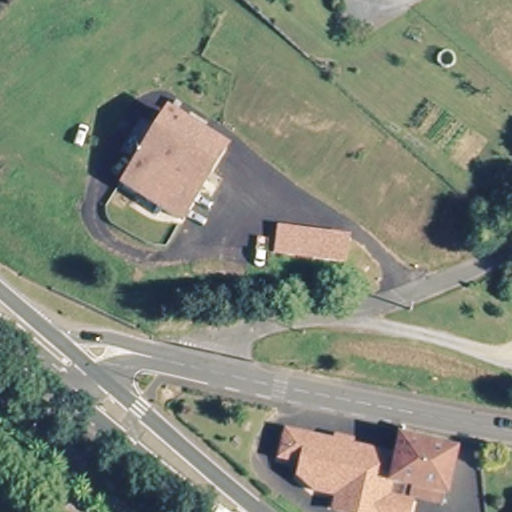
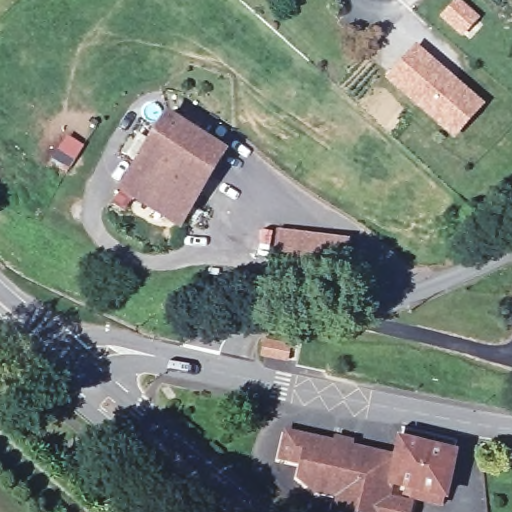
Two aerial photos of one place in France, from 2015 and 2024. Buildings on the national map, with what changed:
new [(487,104),(455,140),(383,78),(417,43),(487,104)]
unchanged [(175,110),(216,138),(229,146),(181,219),(127,184),(127,183),(175,110)]
unchanged [(258,247),(260,231),(280,234),(331,242),(328,267),(328,268),(256,257),(258,247)]
unchanged [(370,447),(395,451),(398,432),(401,433),(454,442),(445,494),(408,487),(410,479),(393,476),(390,493),(412,497),(410,512),(363,512),(360,511),(361,507),(361,505),(355,504),(337,501),(338,496),(338,492),(325,489),(315,487),(302,478),(300,476),(302,461),(279,457),(283,432),(370,447)]

